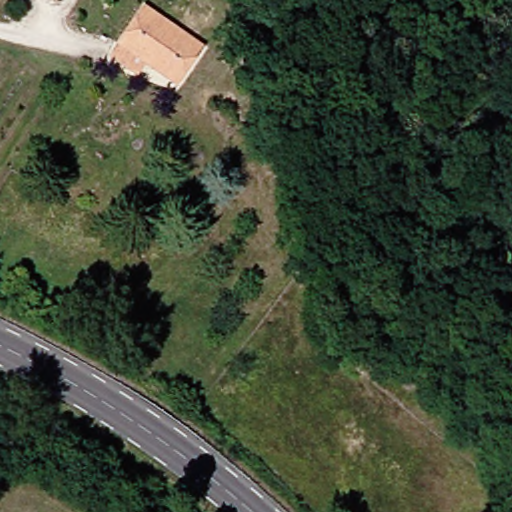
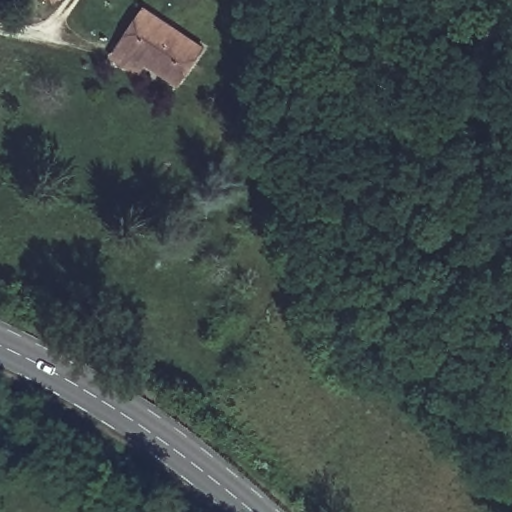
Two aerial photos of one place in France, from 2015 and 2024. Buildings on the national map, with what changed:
unchanged [(114,54),(122,42),(149,5),(207,49),(183,80),(154,59),(151,62),(147,59),(138,71),(114,54)]

